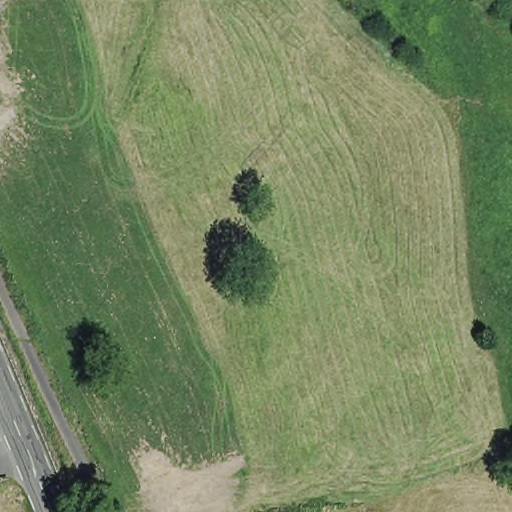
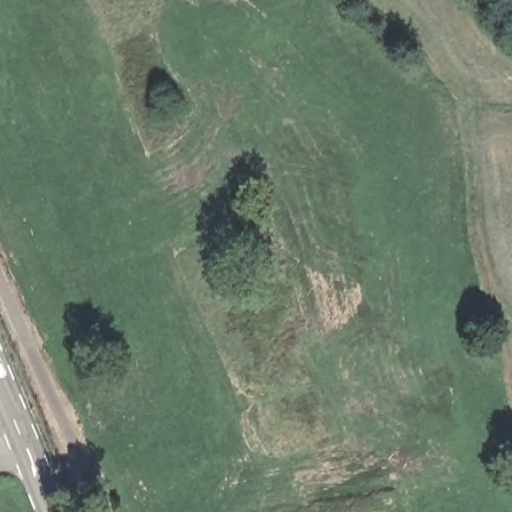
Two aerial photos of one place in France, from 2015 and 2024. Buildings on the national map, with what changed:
[]

